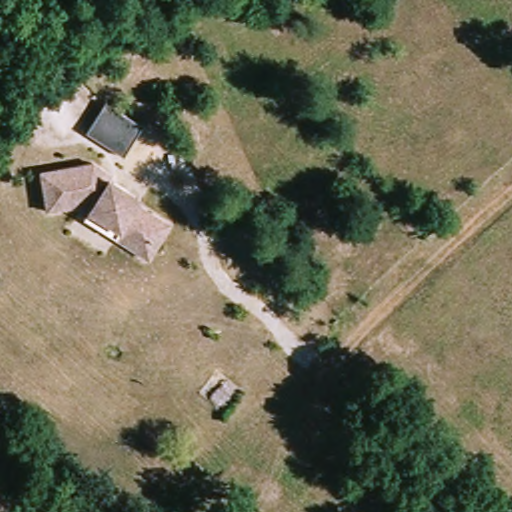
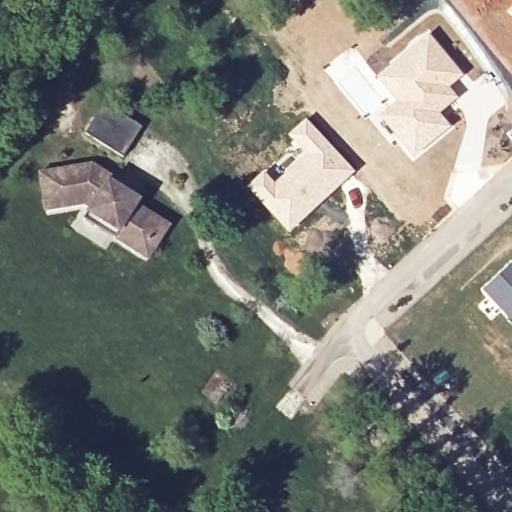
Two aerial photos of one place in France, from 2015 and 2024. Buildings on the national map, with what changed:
new [(512,18),(506,12),(512,6),(512,18)]
new [(428,30),(464,74),(450,87),(458,96),(440,113),(451,126),(412,160),(377,117),(395,100),(376,76),(428,30)]
unchanged [(147,127),(130,159),(90,137),(107,105),(147,127)]
new [(265,170),(274,180),(295,146),(286,136),(306,118),(356,171),(288,234),(245,187),(265,170)]
unchanged [(90,216),(91,213),(85,209),(50,220),(39,181),(90,166),(110,177),(107,182),(126,192),(139,199),(136,204),(171,224),(151,260),(116,240),(85,224),(90,216)]
new [(512,320),(482,289),(512,261),(512,320)]

